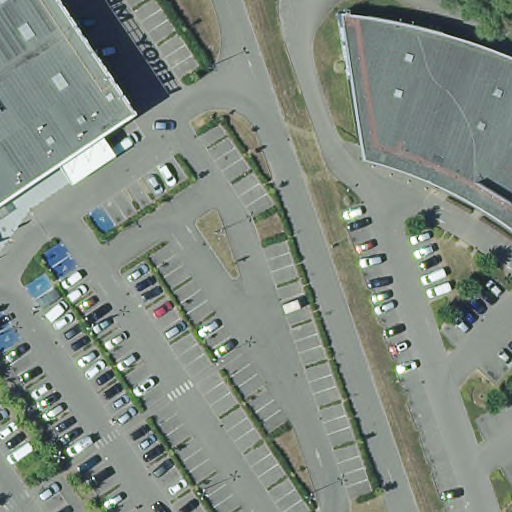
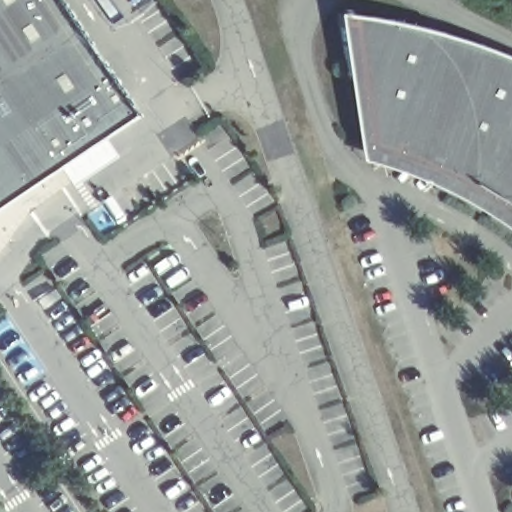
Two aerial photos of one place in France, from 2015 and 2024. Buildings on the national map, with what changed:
unchanged [(0,196),(0,0),(52,0),(127,111),(0,196)]
unchanged [(352,10),(371,12),(391,17),(410,21),(419,23),(428,26),(445,30),(463,36),(485,44),(506,52),(512,54),(512,212),(511,211),(497,201),(491,197),(482,192),(475,188),(473,187),(458,178),(445,172),(432,166),(416,159),(397,152),(381,146),(364,142),(354,139),(334,7),(352,10)]

